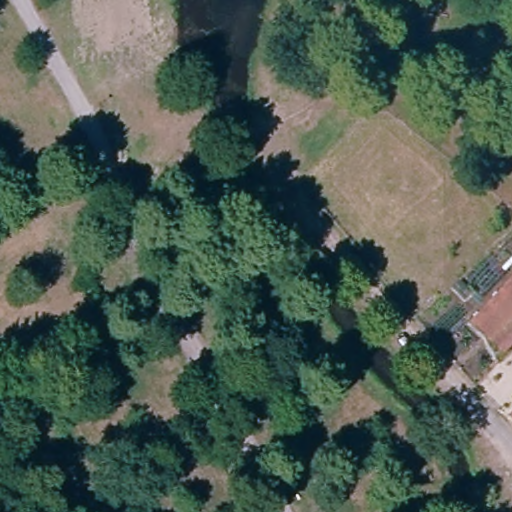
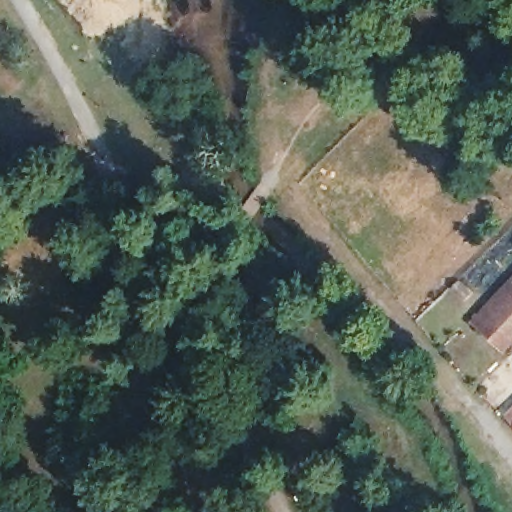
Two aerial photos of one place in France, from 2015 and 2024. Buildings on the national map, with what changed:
unchanged [(478,319),(512,285),(512,341),(505,347),(478,319)]
unchanged [(512,416),(511,415),(512,415),(512,416)]

